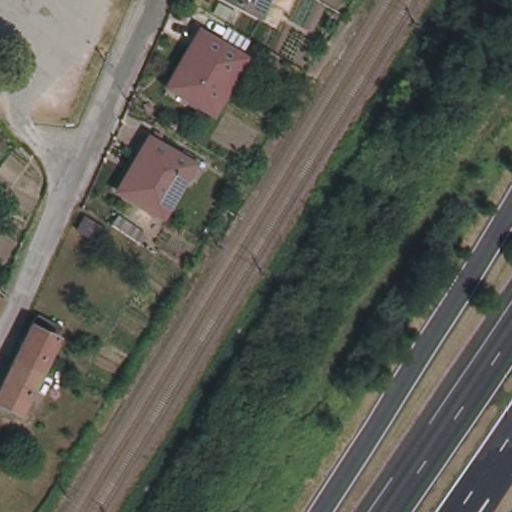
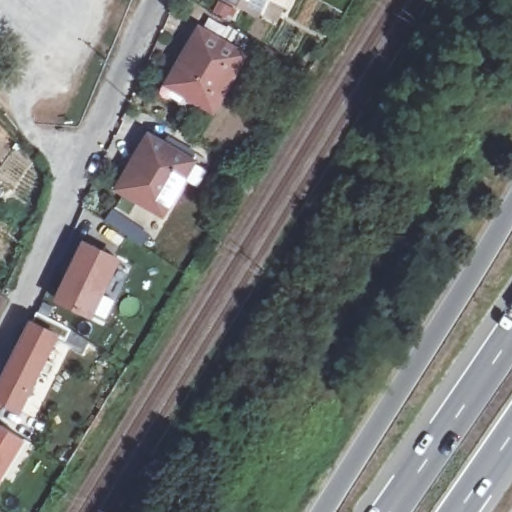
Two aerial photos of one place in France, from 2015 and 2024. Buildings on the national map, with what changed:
unchanged [(235,9),(217,0),(271,0),(262,21),(254,17),(235,9)]
unchanged [(201,28),(245,54),(214,107),(169,81),(201,28)]
unchanged [(152,135),(195,159),(167,211),(122,185),(152,135)]
unchanged [(115,221),(122,210),(150,231),(142,240),(115,221)]
new [(83,246),(117,262),(90,319),(55,303),(83,246)]
unchanged [(0,311),(0,298),(5,302),(0,311)]
unchanged [(0,402),(0,387),(29,330),(30,330),(39,317),(56,326),(49,340),(55,343),(19,411),(0,402)]
unchanged [(0,480),(0,429),(25,442),(0,480)]

